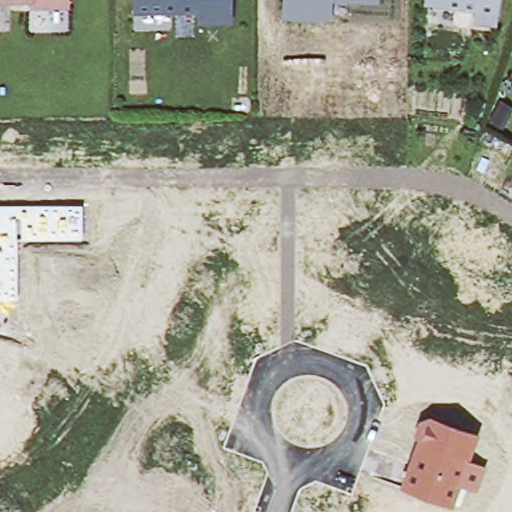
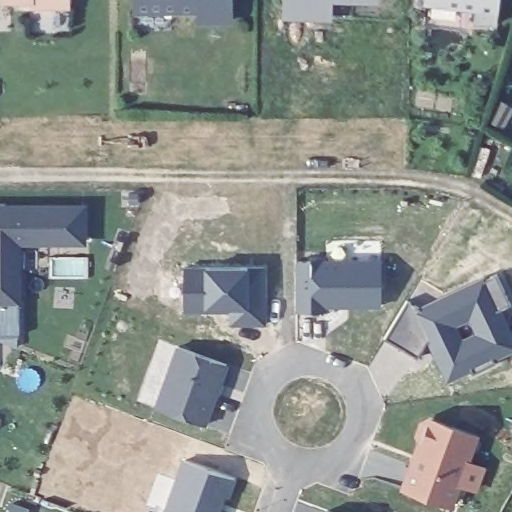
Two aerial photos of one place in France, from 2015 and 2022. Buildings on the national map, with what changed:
unchanged [(69,6),(35,6),(35,0),(69,0),(69,6)]
unchanged [(232,20),(201,20),(200,9),(137,10),(136,0),(232,0),(232,20)]
unchanged [(305,15),(283,14),(284,0),(342,0),(342,16),(305,15)]
unchanged [(495,21),(476,19),(477,5),(439,0),(498,0),(495,21)]
unchanged [(0,300),(0,208),(82,207),(82,240),(17,241),(17,301),(0,300)]
new [(382,263),(382,309),(318,310),(318,315),(296,315),(297,263),(382,263)]
new [(267,270),(267,328),(229,328),(230,315),(183,314),(183,270),(267,270)]
new [(420,310),(496,275),(510,306),(502,311),(512,334),(512,355),(447,385),(427,344),(418,360),(385,341),(409,302),(420,310)]
unchanged [(178,347),(227,365),(220,383),(222,384),(221,385),(217,383),(214,392),(217,393),(217,395),(216,394),(205,425),(156,407),(178,347)]
unchanged [(418,440),(413,434),(418,420),(430,417),(479,435),(470,460),(485,466),(477,491),(460,485),(452,507),(400,487),(418,440)]
new [(230,502),(227,501),(223,512),(164,512),(182,462),(236,482),(230,502)]
new [(27,512),(7,512),(9,505),(28,510),(27,512)]
new [(327,512),(325,512),(325,511),(327,512)]

